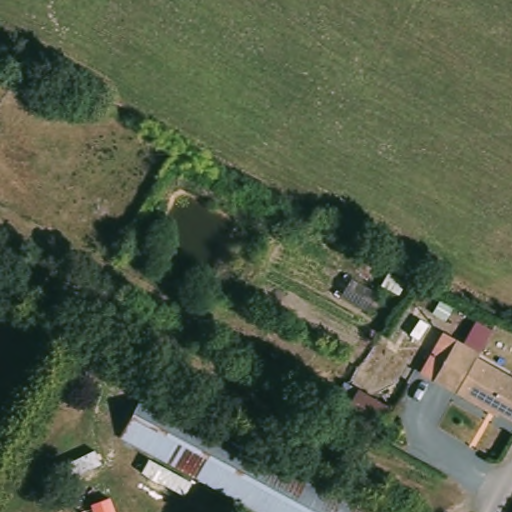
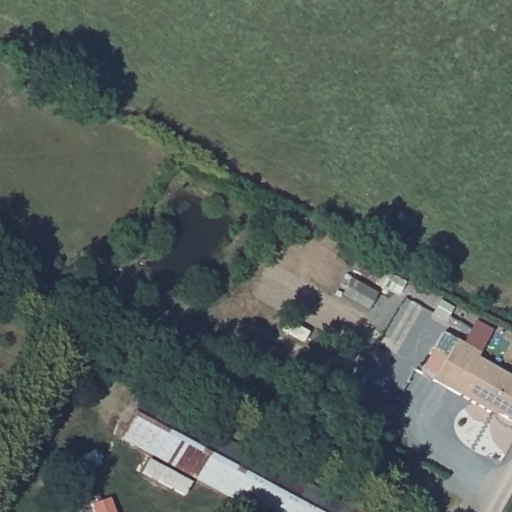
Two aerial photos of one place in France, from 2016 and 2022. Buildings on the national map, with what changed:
unchanged [(451,354),(443,348),(440,353),(430,347),(442,330),(483,353),(479,360),(512,379),(512,422),(492,410),(490,413),(435,380),(451,354)]
unchanged [(375,385),(369,396),(402,415),(392,433),(330,401),(349,371),(375,385)]
unchanged [(263,512),(122,433),(144,394),(370,512),(263,512)]

